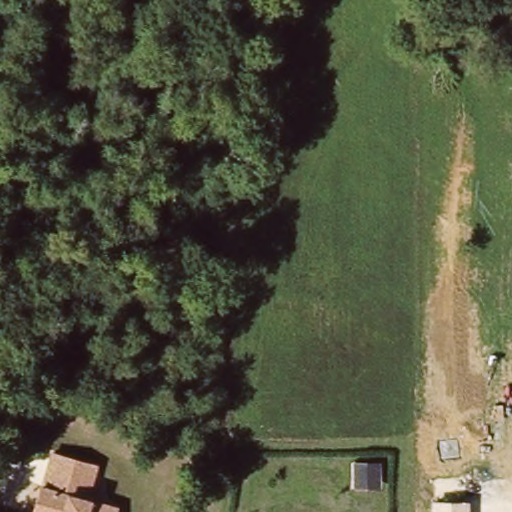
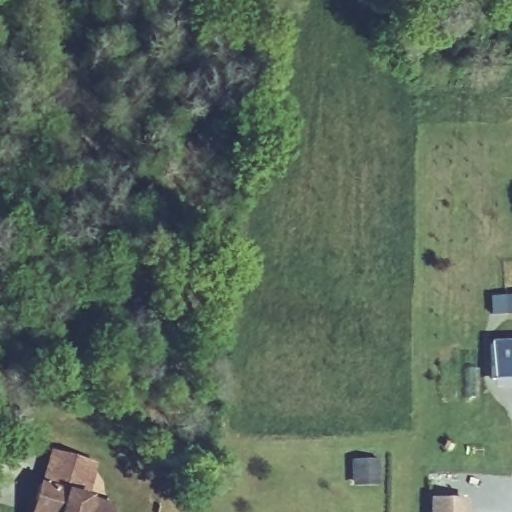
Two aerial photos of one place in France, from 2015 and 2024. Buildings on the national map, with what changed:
new [(512,341),(512,380),(492,381),(490,342),(512,341)]
unchanged [(50,450),(98,464),(90,499),(119,507),(117,512),(32,512),(50,450)]
unchanged [(380,461),(380,488),(352,487),(352,461),(380,461)]
unchanged [(430,499),(467,501),(467,512),(429,512),(430,499)]

